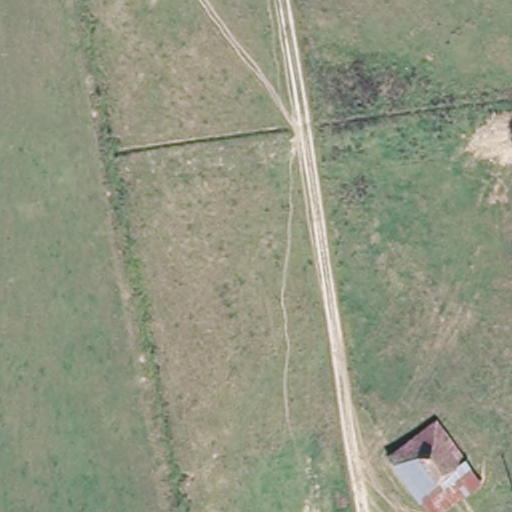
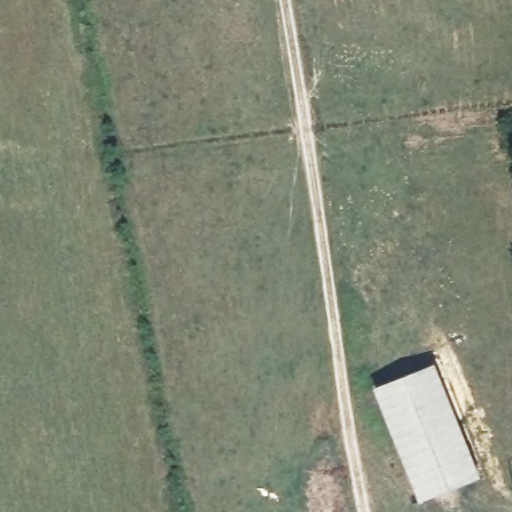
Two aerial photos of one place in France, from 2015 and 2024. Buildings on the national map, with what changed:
new [(483,477),(420,502),(373,386),(436,362),(483,477)]
demolished [(434,414),(483,482),(442,512),(425,512),(382,453),(434,414)]

